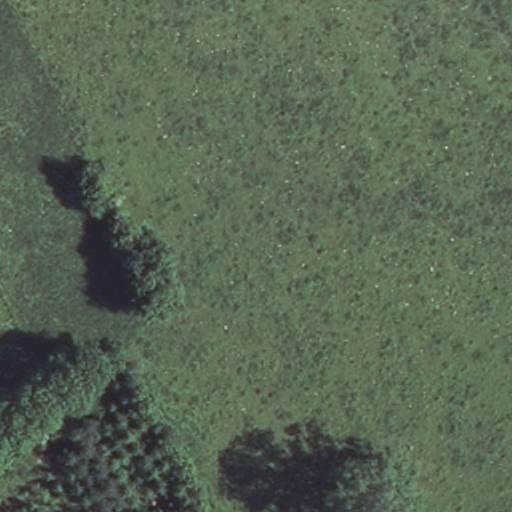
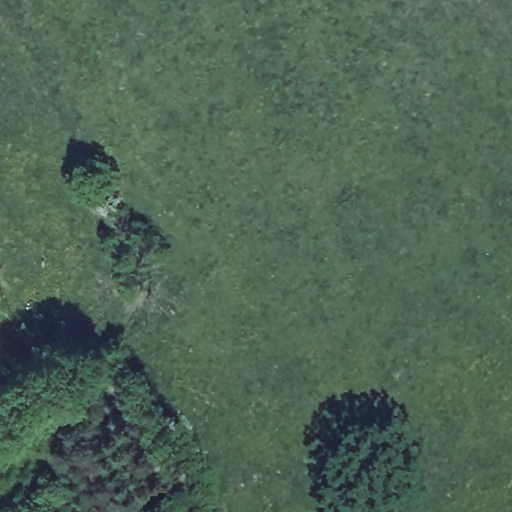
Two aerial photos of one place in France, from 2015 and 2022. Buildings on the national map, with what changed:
[]

